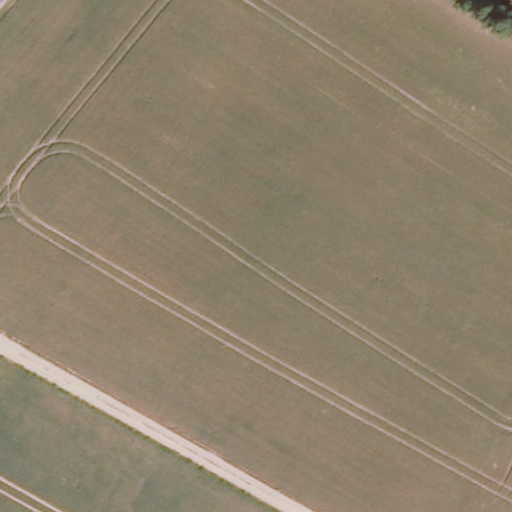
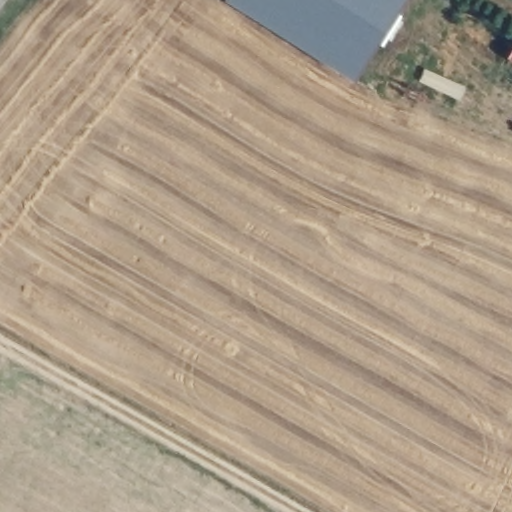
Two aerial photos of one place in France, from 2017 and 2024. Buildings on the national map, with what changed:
new [(359,72),(249,0),(402,0),(359,72)]

